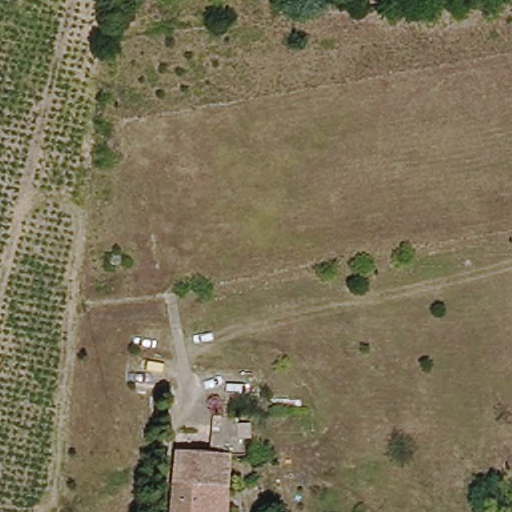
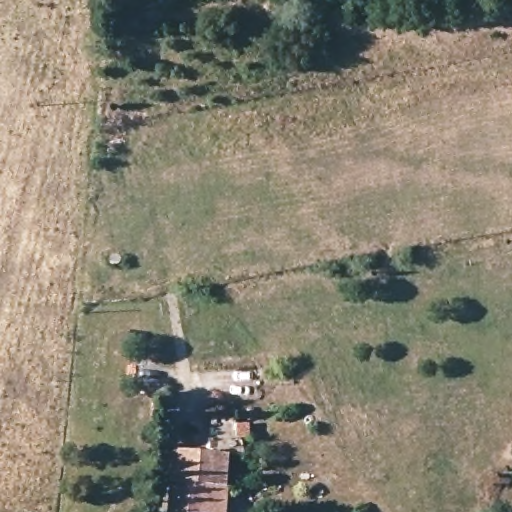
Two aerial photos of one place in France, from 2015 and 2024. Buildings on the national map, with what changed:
unchanged [(191,431),(190,448),(205,448),(205,435),(237,436),(240,456),(215,455),(213,512),(206,512),(199,511),(199,512),(163,512),(167,430),(191,431)]

